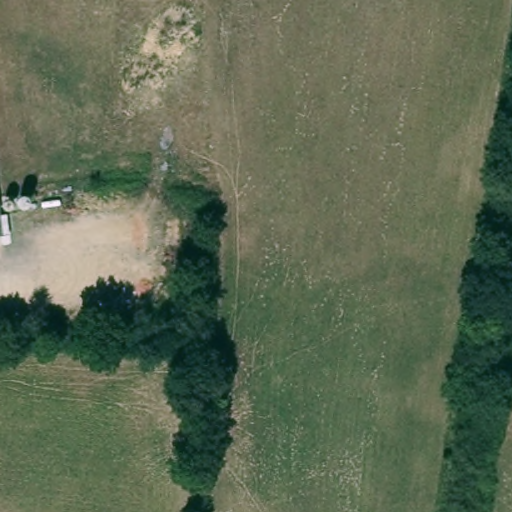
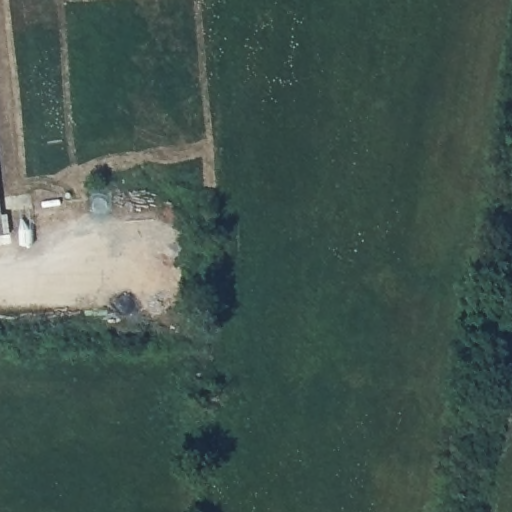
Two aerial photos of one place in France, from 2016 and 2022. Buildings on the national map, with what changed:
unchanged [(1,216),(6,216),(8,236),(0,237),(0,208),(1,216)]

